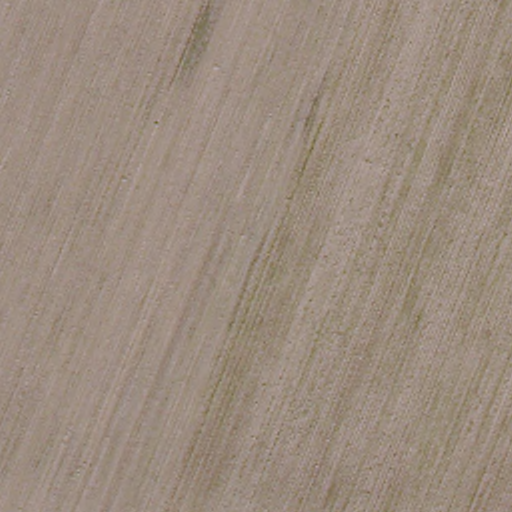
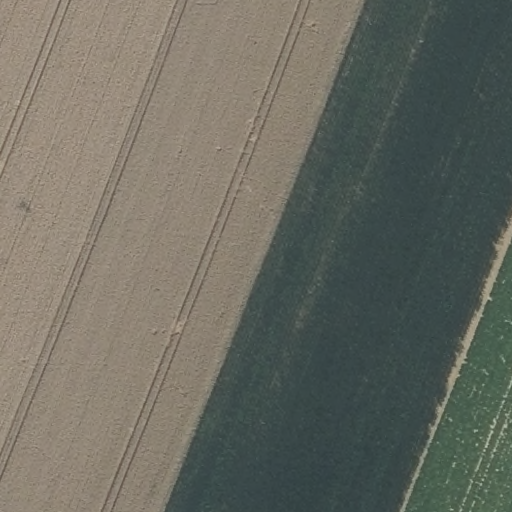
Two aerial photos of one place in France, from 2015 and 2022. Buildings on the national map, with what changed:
[]

